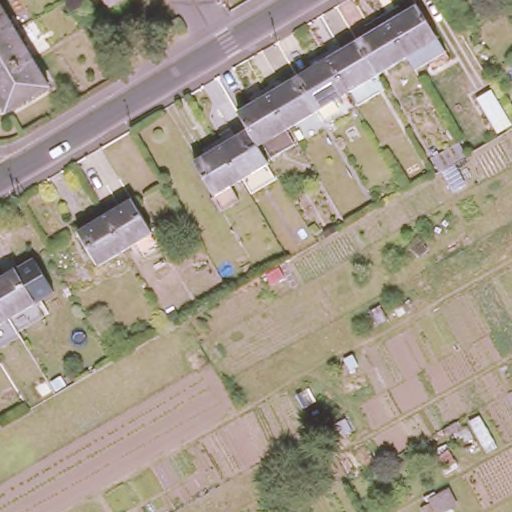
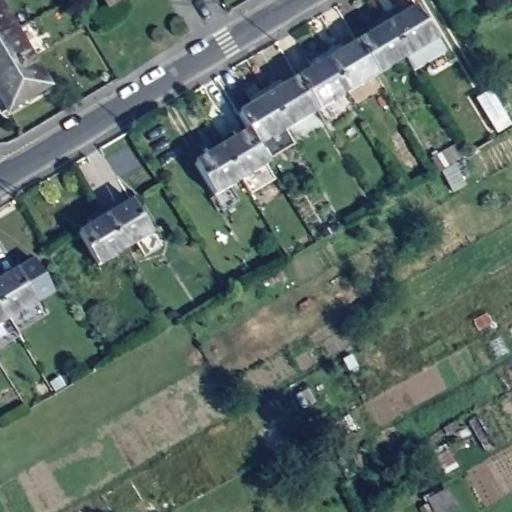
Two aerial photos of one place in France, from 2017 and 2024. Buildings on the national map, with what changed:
unchanged [(0,39),(0,0),(16,28),(0,39)]
unchanged [(108,3),(107,0),(113,0),(108,3)]
unchanged [(399,7),(402,13),(417,3),(445,48),(415,67),(407,55),(384,16),(399,7)]
unchanged [(377,73),(357,39),(373,30),(370,24),(384,16),(407,55),(377,73)]
unchanged [(0,75),(0,39),(16,28),(33,55),(0,75)]
unchanged [(347,91),(324,51),(338,42),(342,48),(357,39),(377,73),(347,91)]
unchanged [(325,121),(317,108),(297,74),(312,65),(309,60),(324,51),(347,91),(355,104),(325,121)]
unchanged [(9,108),(0,93),(0,75),(33,55),(50,84),(9,108)]
unchanged [(288,126),(265,86),(279,78),(282,83),(297,74),(317,108),(288,126)]
unchanged [(257,144),(248,127),(237,110),(255,100),(251,95),(265,86),(288,126),(257,144)]
unchanged [(512,126),(512,128),(498,136),(478,101),(492,93),(512,126)]
unchanged [(265,162),(274,175),(252,188),(244,175),(241,177),(217,136),(232,128),(236,135),(248,127),(257,144),(267,160),(265,162)]
unchanged [(231,182),(239,195),(222,206),(194,160),(207,152),(202,145),(217,136),(241,177),(231,182)]
unchanged [(460,146),(466,157),(446,169),(435,175),(429,164),(460,146)]
unchanged [(115,202),(120,209),(132,201),(160,249),(143,259),(134,245),(125,250),(101,210),(115,202)]
unchanged [(97,266),(77,233),(91,225),(87,218),(101,210),(125,250),(97,266)]
unchanged [(8,274),(21,267),(39,298),(13,315),(0,293),(0,269),(4,267),(8,274)]
unchanged [(0,293),(13,315),(22,330),(0,344),(0,293)]

